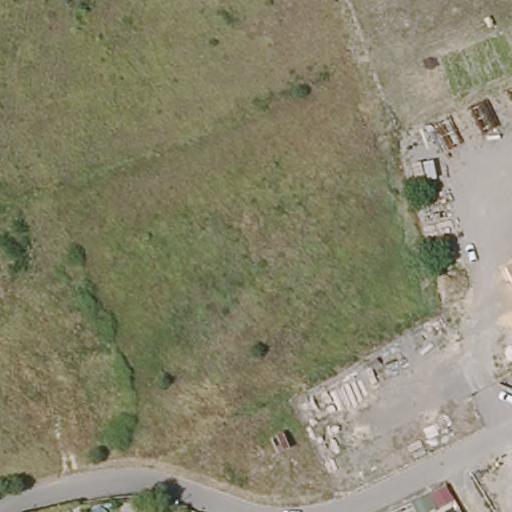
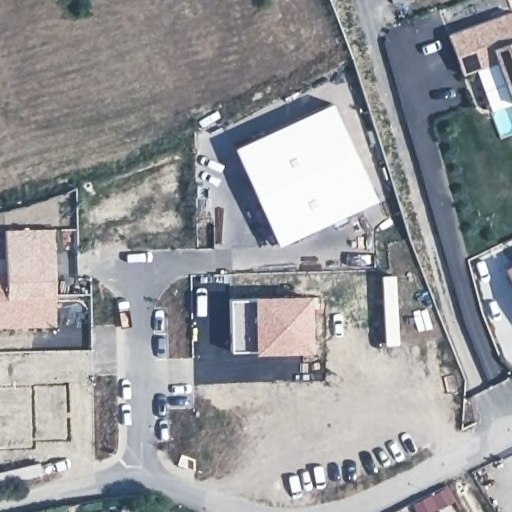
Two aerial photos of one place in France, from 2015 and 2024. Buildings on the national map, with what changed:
new [(512,12),(512,13),(512,97),(499,61),(464,74),(449,34),(512,12)]
new [(291,122),(332,101),(378,199),(277,245),(233,146),(291,122)]
new [(3,229),(54,228),(55,326),(0,329),(0,270),(3,270),(3,229)]
unchanged [(506,262),(512,259),(512,276),(506,262)]
new [(251,295),(253,350),(229,351),(228,297),(251,295)]
new [(312,295),(310,351),(253,353),(253,350),(251,295),(312,295)]
new [(68,436),(30,438),(31,444),(0,445),(0,384),(64,381),(68,436)]
demolished [(291,449),(274,455),(269,437),(284,432),(291,449)]

